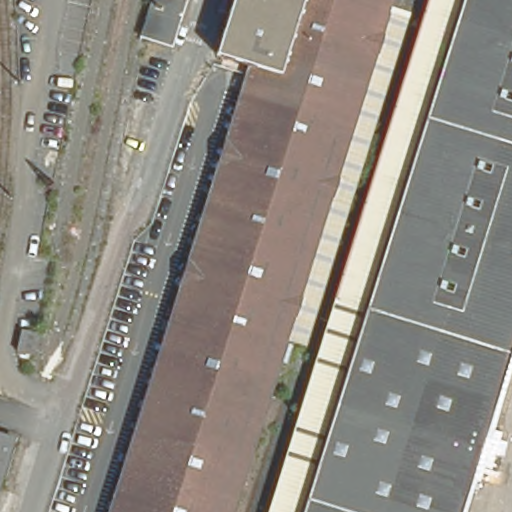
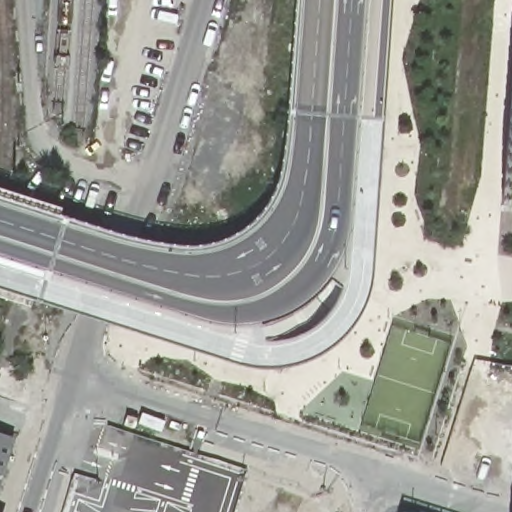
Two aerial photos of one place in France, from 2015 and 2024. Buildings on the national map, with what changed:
demolished [(110,512),(251,64),(203,49),(219,0),(355,0),(195,512),(110,512)]
demolished [(512,303),(446,512),(286,512),(450,0),(512,0),(512,303)]
new [(512,101),(512,206),(503,205),(512,101)]
demolished [(9,348),(16,324),(37,330),(30,354),(9,348)]
unchanged [(18,440),(0,497),(0,434),(18,440)]

